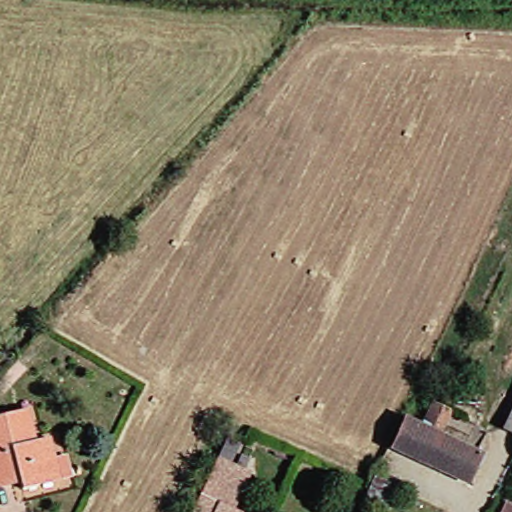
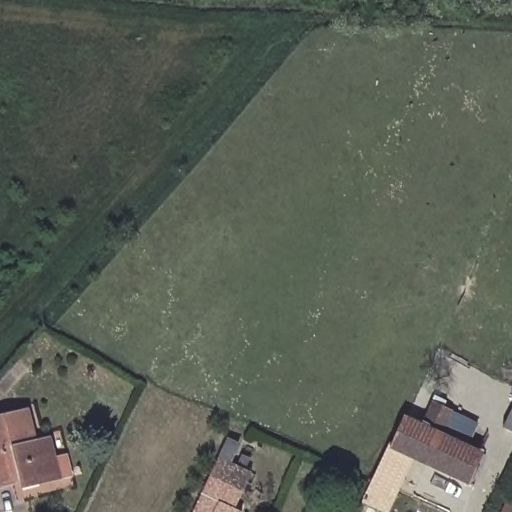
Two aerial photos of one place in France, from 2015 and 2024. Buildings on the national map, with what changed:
unchanged [(432,404),(441,408),(450,413),(440,436),(480,454),(467,484),(392,450),(406,420),(421,427),(432,404)]
unchanged [(502,429),(512,409),(512,434),(502,429)]
unchanged [(22,490),(20,481),(13,482),(0,486),(0,417),(26,410),(34,442),(48,439),(58,476),(59,481),(39,486),(22,490)]
unchanged [(241,512),(191,512),(218,454),(226,436),(238,442),(230,459),(236,462),(241,451),(248,454),(243,465),(246,467),(239,483),(229,504),(241,510),(241,512)]
unchanged [(398,488),(388,512),(384,512),(363,503),(374,478),(398,488)]
unchanged [(511,503),(512,503),(512,512),(507,512),(511,503)]

